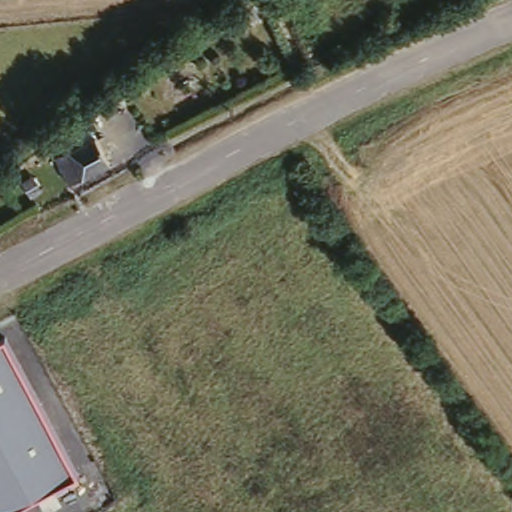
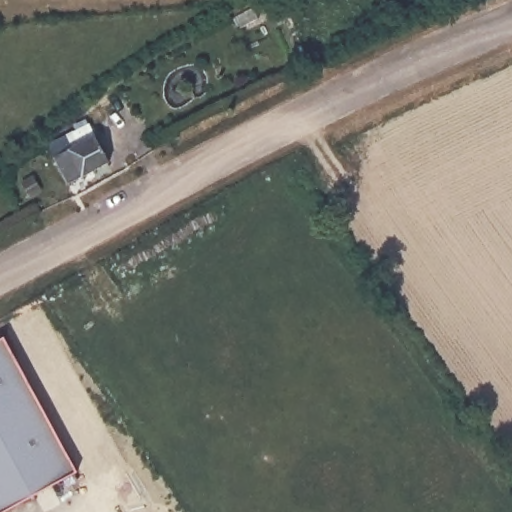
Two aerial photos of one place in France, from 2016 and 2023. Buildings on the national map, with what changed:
unchanged [(65,186),(51,158),(45,148),(98,119),(104,131),(119,157),(65,186)]
unchanged [(78,473),(6,512),(0,512),(0,341),(4,338),(78,473)]

